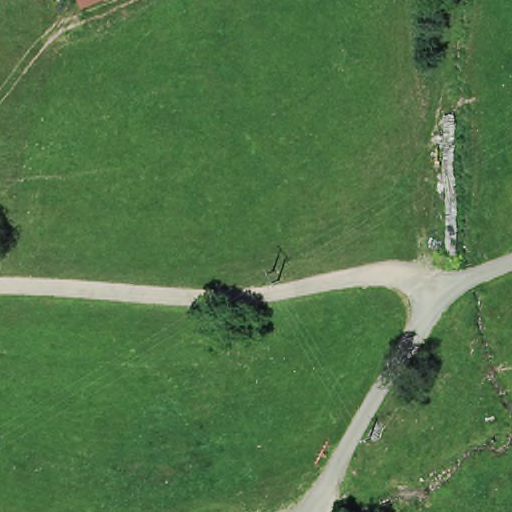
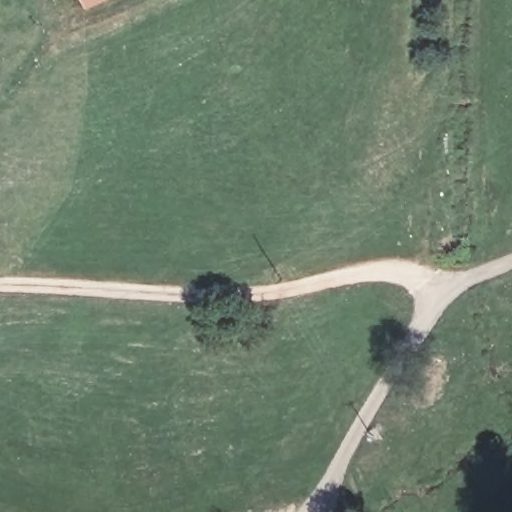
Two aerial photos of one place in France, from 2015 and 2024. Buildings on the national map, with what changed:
unchanged [(84,0),(113,0),(90,11),(84,0)]

